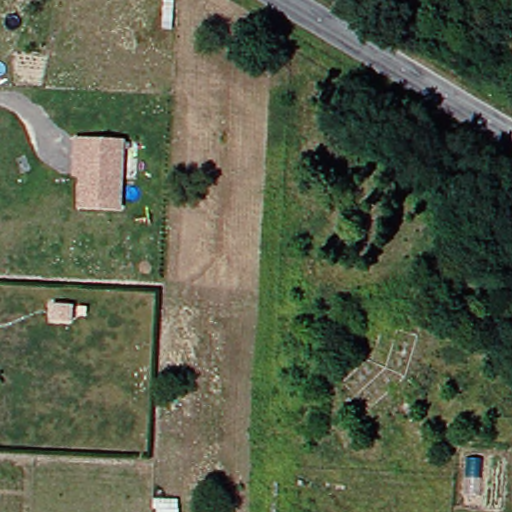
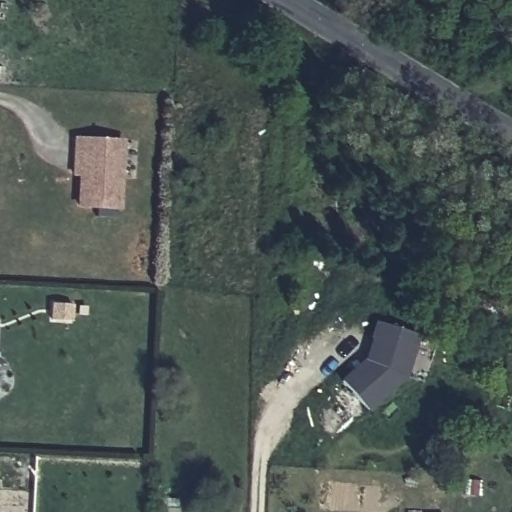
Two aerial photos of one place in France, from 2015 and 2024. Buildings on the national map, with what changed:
unchanged [(85,173),(79,173),(79,161),(80,144),(80,140),(96,140),(126,141),(123,207),(84,206),(85,173)]
new [(419,334),(407,379),(368,411),(340,380),(366,358),(373,324),(419,334)]

